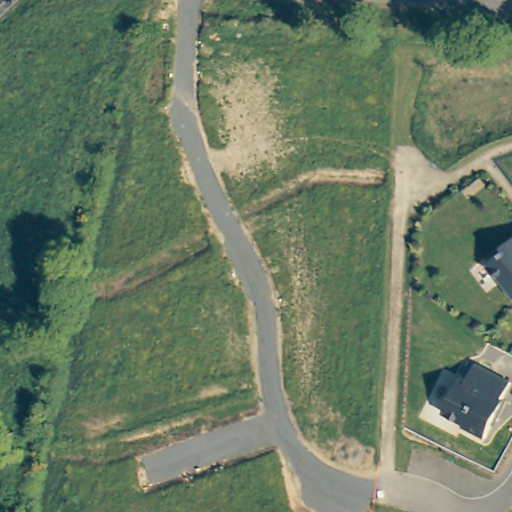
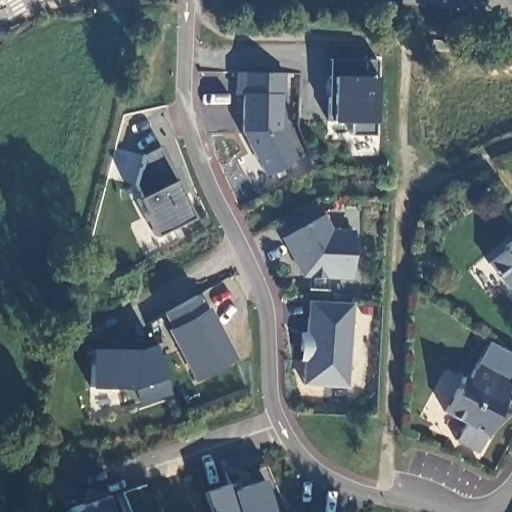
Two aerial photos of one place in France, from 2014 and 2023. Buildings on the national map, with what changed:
new [(349,136),(350,121),(330,121),(331,76),(330,59),(376,60),(376,78),(375,121),(374,135),(349,136)]
new [(242,133),(243,94),(236,94),(236,72),(285,73),(285,94),(281,94),(281,130),(298,158),(268,175),(242,133)]
new [(135,199),(140,196),(134,185),(143,157),(162,148),(178,180),(173,183),(190,218),(155,236),(135,199)]
unchanged [(304,277),(281,236),(324,214),(331,229),(355,230),(351,279),(304,277)]
unchanged [(503,251),(503,246),(512,238),(512,296),(487,264),(503,251)]
new [(167,329),(172,326),(163,312),(196,293),(204,307),(208,305),(238,360),(198,382),(167,329)]
new [(304,385),(306,362),(300,362),(301,332),(306,333),(307,301),(355,303),(350,388),(304,385)]
new [(142,404),(134,389),(90,388),(92,349),(136,350),(155,346),(164,378),(171,394),(142,404)]
unchanged [(502,399),(506,401),(497,419),(495,418),(485,438),(462,426),(464,424),(443,413),(461,378),(466,380),(475,364),(510,383),(502,399)]
new [(231,484),(234,491),(268,480),(278,512),(213,512),(206,492),(231,484)]
new [(107,493),(113,512),(67,512),(65,507),(107,493)]

